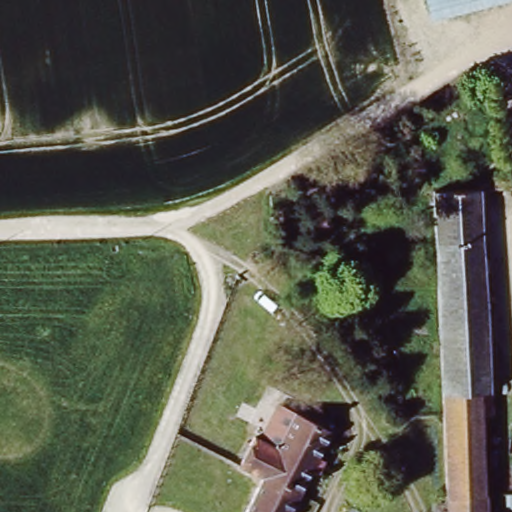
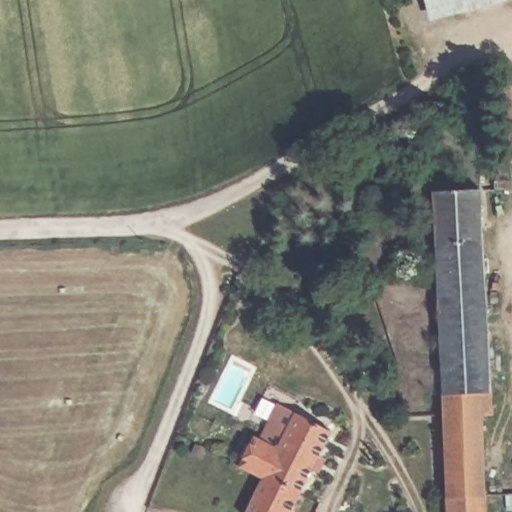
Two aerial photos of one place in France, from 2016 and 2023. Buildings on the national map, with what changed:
unchanged [(431,0),(512,0),(512,2),(436,19),(431,0)]
unchanged [(441,197),(494,194),(502,427),(492,428),(494,505),(448,505),(447,420),(441,197)]
unchanged [(263,480),(242,466),(251,443),(276,450),(294,415),(305,417),(307,411),(314,405),(323,403),(328,411),(326,418),(323,422),(332,428),(292,512),(249,512),(263,480)]
unchanged [(494,512),(448,512),(448,505),(494,505),(494,512)]

